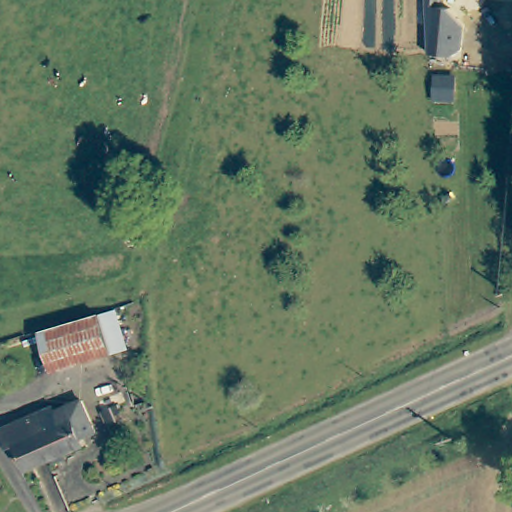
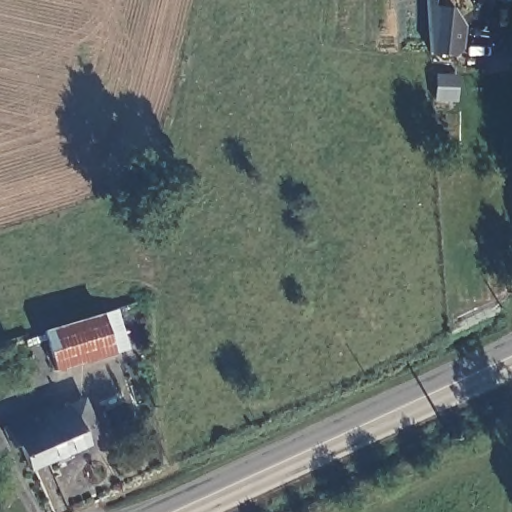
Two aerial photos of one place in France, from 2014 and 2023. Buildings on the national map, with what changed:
unchanged [(459,7),(472,24),(469,49),(461,55),(437,52),(433,0),(449,0),(449,5),(459,7)]
unchanged [(139,298),(140,317),(128,321),(121,303),(139,298)]
unchanged [(126,348),(55,370),(43,331),(115,310),(126,348)]
unchanged [(96,430),(83,436),(86,443),(29,468),(18,443),(11,446),(3,428),(41,411),(50,430),(62,424),(56,411),(82,400),(96,430)]

